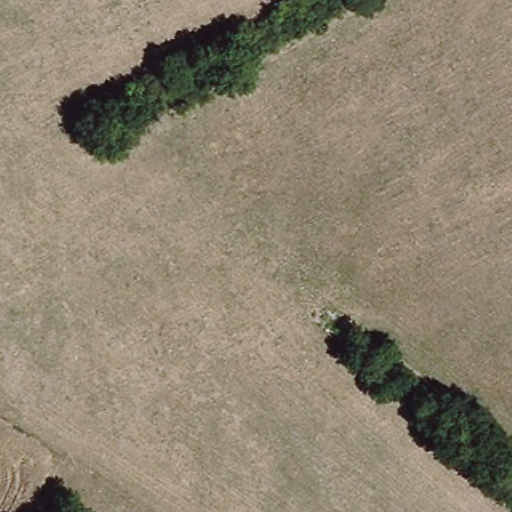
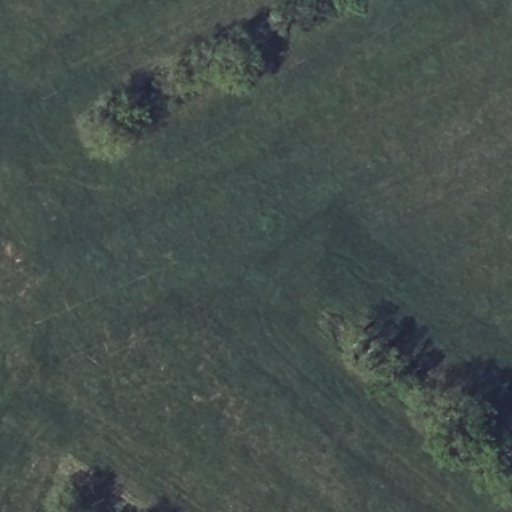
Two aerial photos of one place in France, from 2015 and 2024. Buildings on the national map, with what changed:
[]

